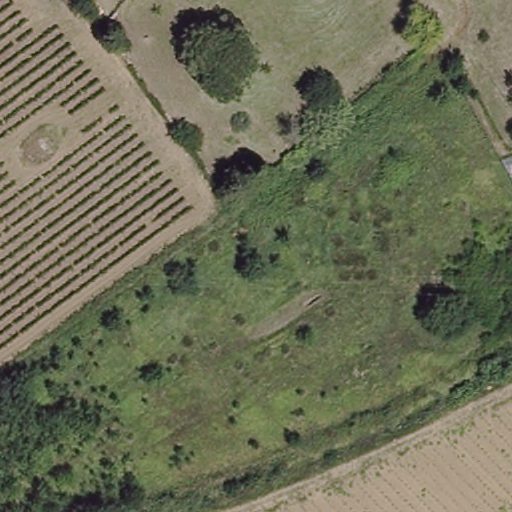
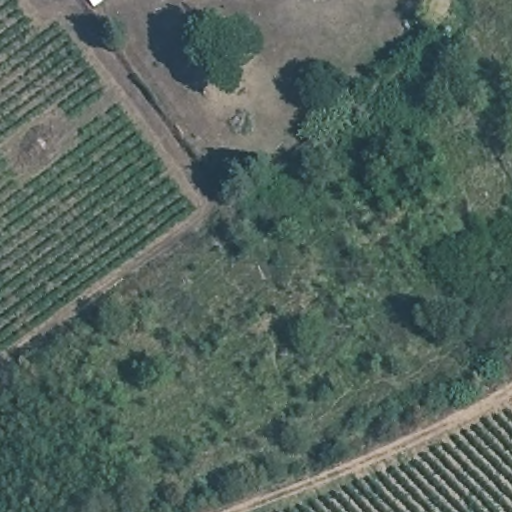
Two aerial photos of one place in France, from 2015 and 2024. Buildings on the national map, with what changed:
[]

